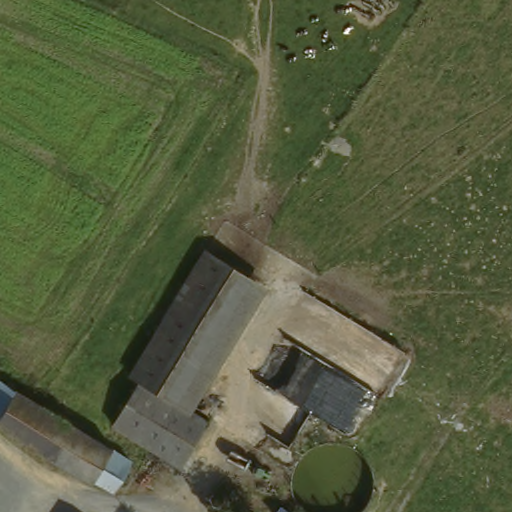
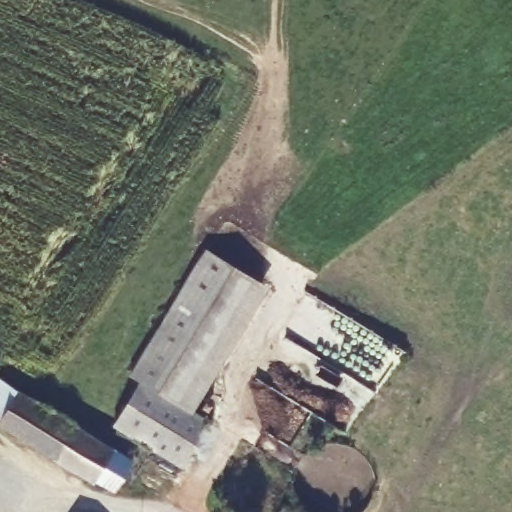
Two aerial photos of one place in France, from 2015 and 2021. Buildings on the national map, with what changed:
unchanged [(201,257),(252,286),(179,407),(139,386),(127,380),(201,257)]
unchanged [(179,407),(206,422),(180,467),(112,430),(139,386),(179,407)]
unchanged [(100,490),(41,456),(1,430),(0,429),(0,396),(4,390),(118,459),(139,472),(120,501),(100,490)]

